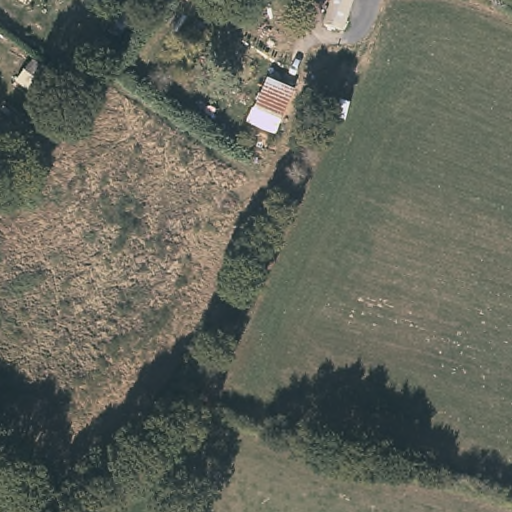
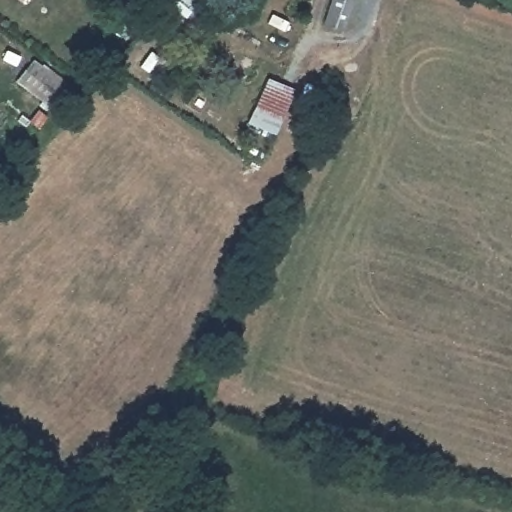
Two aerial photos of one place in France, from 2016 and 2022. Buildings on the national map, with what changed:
unchanged [(129,7),(134,0),(152,0),(140,15),(129,7)]
unchanged [(324,19),(330,0),(352,0),(347,22),(346,26),(324,19)]
unchanged [(66,86),(50,107),(16,82),(33,60),(66,86)]
unchanged [(294,89),(276,130),(250,120),(268,78),(294,89)]

